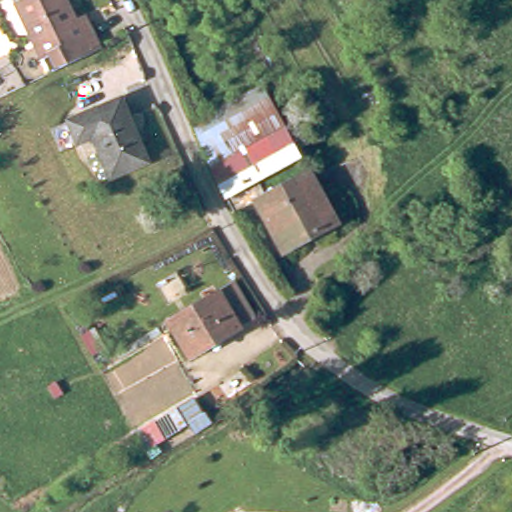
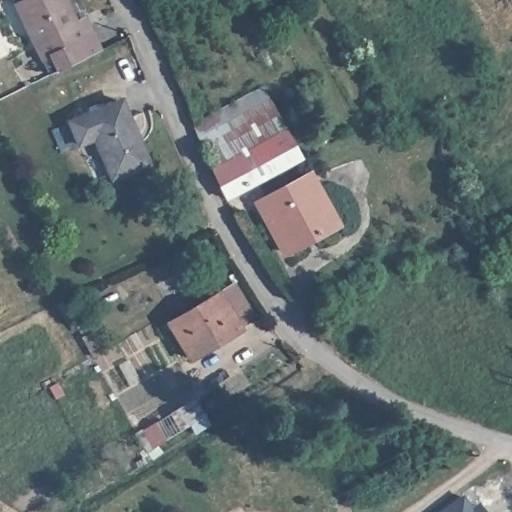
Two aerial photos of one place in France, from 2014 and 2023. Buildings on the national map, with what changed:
unchanged [(105,49),(55,73),(20,0),(71,0),(81,23),(90,19),(98,34),(105,49)]
unchanged [(218,175),(198,126),(267,96),(290,136),(218,175)]
unchanged [(98,137),(83,144),(74,121),(127,99),(153,163),(116,178),(98,137)]
unchanged [(304,161),(280,174),(281,176),(232,202),(218,175),(290,136),(304,161)]
unchanged [(341,228),(289,256),(263,208),(314,179),(341,228)]
unchanged [(243,325),(245,328),(195,358),(174,321),(240,283),(261,316),(243,325)]
unchanged [(179,406),(193,398),(203,414),(206,412),(211,422),(196,432),(179,406)]
unchanged [(148,450),(137,432),(146,426),(158,444),(148,450)]
new [(473,512),(444,512),(463,499),(473,512)]
new [(481,509),(483,512),(477,512),(481,509)]

